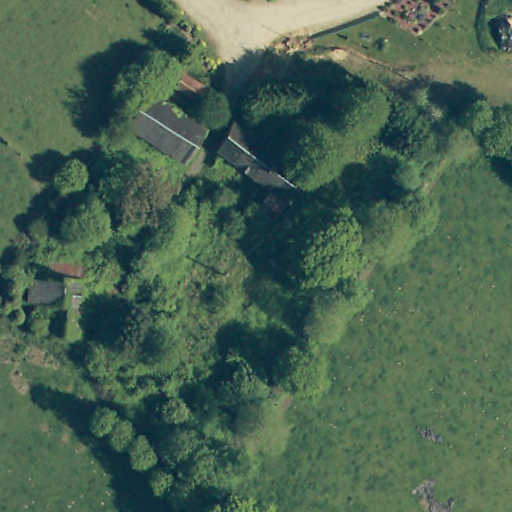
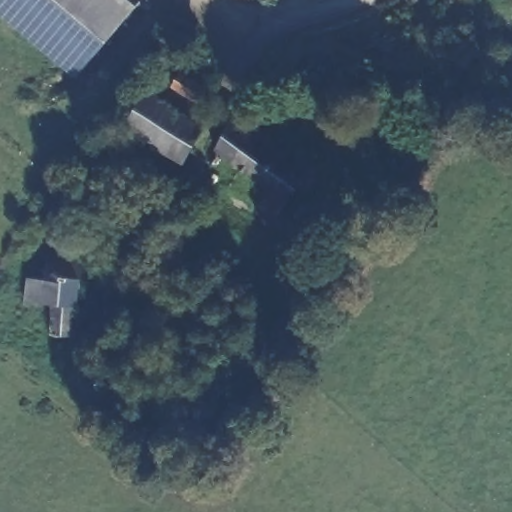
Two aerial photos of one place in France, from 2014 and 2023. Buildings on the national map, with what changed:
new [(139,3),(134,9),(74,78),(0,15),(0,0),(136,0),(139,3)]
unchanged [(189,89),(161,75),(168,61),(197,76),(189,89)]
unchanged [(139,92),(197,123),(180,157),(122,124),(139,92)]
unchanged [(250,214),(264,190),(209,149),(223,123),(237,132),(247,122),(281,149),(273,162),(296,176),(279,201),(264,221),(250,214)]
unchanged [(46,336),(50,303),(21,301),(26,266),(41,268),(44,254),(76,259),(68,335),(46,336)]
demolished [(50,378),(77,403),(57,421),(33,395),(50,378)]

